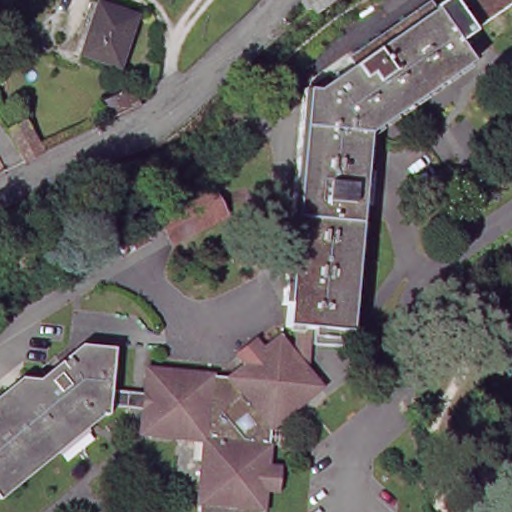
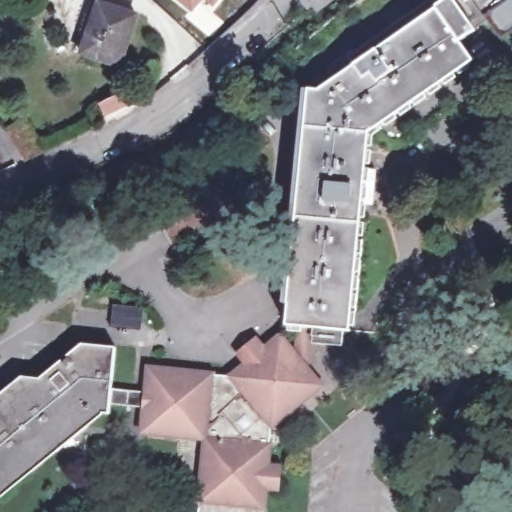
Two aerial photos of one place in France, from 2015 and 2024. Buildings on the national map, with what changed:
new [(194,14),(177,0),(205,0),(194,14)]
new [(215,6),(207,0),(220,0),(215,6)]
unchanged [(301,330),(298,330),(288,329),(310,93),(322,93),(354,71),(351,63),(433,5),(439,12),(456,0),(512,0),(512,7),(461,43),(474,64),(370,136),(361,226),(359,244),(365,245),(359,317),(353,316),(351,335),(345,334),(334,333),(316,332),(312,331),(301,330)]
unchanged [(319,12),(316,6),(315,4),(308,9),(301,0),(335,0),(319,12)]
unchanged [(142,20),(123,71),(84,57),(101,6),(142,20)]
unchanged [(101,100),(134,84),(142,104),(111,120),(101,100)]
unchanged [(29,121),(46,151),(26,161),(13,137),(10,131),(29,121)]
unchanged [(0,165),(0,163),(1,165),(0,165)]
unchanged [(214,192),(228,218),(175,244),(162,218),(214,192)]
unchanged [(265,512),(200,512),(207,442),(144,435),(150,374),(150,371),(187,374),(235,379),(250,367),(243,356),(257,345),(266,355),(283,341),(297,359),(301,330),(312,331),(309,366),(305,369),(322,388),(274,428),(270,468),(276,469),(282,469),(281,473),(279,490),(267,490),(265,512)]
unchanged [(13,392),(27,393),(30,380),(46,381),(67,363),(70,365),(75,362),(74,359),(87,348),(122,351),(115,417),(95,415),(94,429),(62,454),(49,453),(47,467),(32,466),(31,479),(17,479),(15,493),(7,498),(1,491),(0,492),(0,406),(11,406),(13,392)]

